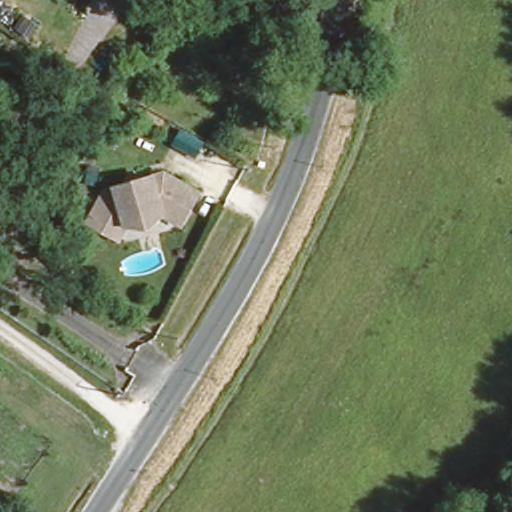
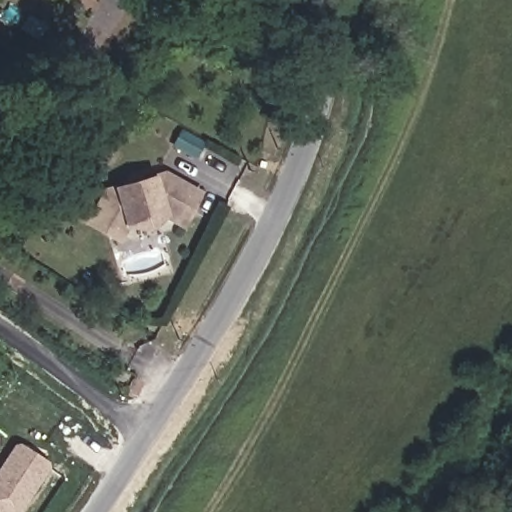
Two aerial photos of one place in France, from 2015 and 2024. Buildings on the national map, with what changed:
unchanged [(102,245),(86,234),(108,204),(128,190),(136,191),(138,183),(159,169),(192,188),(184,204),(175,221),(161,214),(130,236),(116,254),(102,245)]
new [(51,465),(20,512),(0,512),(0,465),(15,441),(51,465)]

